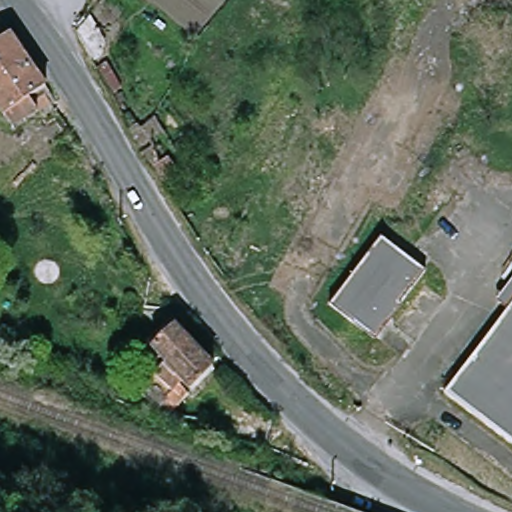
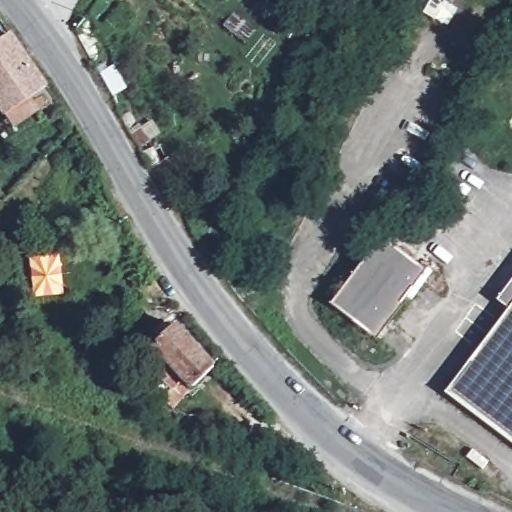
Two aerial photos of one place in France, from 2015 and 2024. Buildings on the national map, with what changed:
unchanged [(95,19),(106,40),(100,71),(77,32),(83,22),(95,19)]
unchanged [(0,103),(0,46),(12,38),(55,104),(38,113),(29,102),(10,117),(0,103)]
unchanged [(353,323),(334,308),(384,239),(426,272),(386,325),(374,341),(353,323)]
unchanged [(491,298),(512,269),(512,298),(505,308),(491,298)]
unchanged [(505,308),(512,298),(512,444),(442,390),(505,308)]
unchanged [(177,392),(172,396),(169,399),(163,393),(150,380),(160,370),(172,358),(159,344),(164,339),(157,332),(171,317),(215,366),(196,382),(188,373),(181,379),(186,384),(177,392)]

